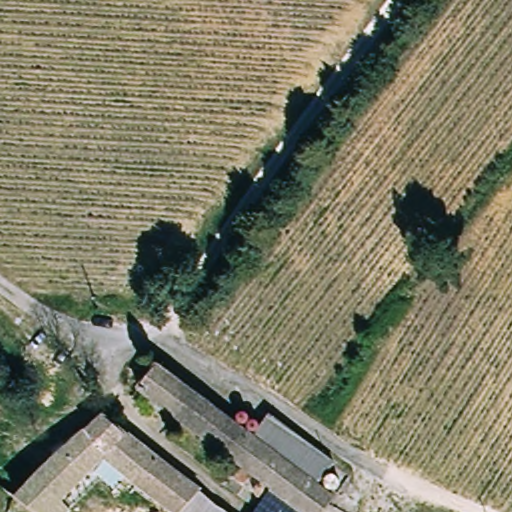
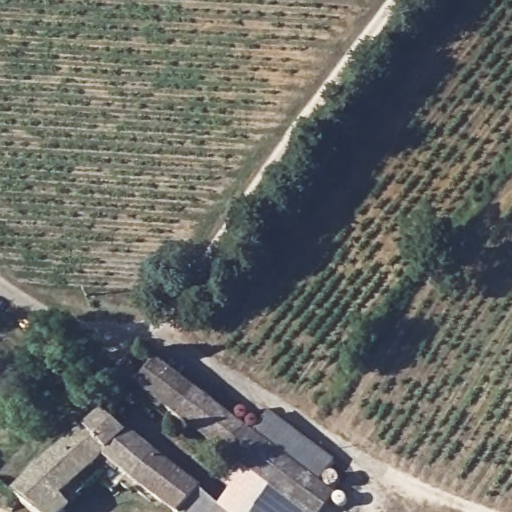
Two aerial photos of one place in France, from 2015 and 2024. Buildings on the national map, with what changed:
unchanged [(250,438),(314,486),(328,496),(317,512),(300,512),(271,491),(133,386),(151,364),(250,438)]
unchanged [(49,453),(39,443),(63,418),(78,430),(101,411),(169,466),(227,512),(167,512),(149,499),(136,510),(93,474),(49,512),(25,512),(3,495),(49,453)]
unchanged [(269,413),(332,459),(314,486),(250,438),(269,413)]
unchanged [(300,512),(254,512),(271,491),(300,512)]

